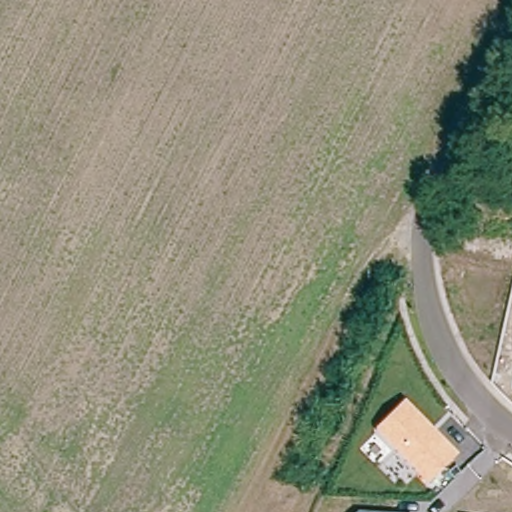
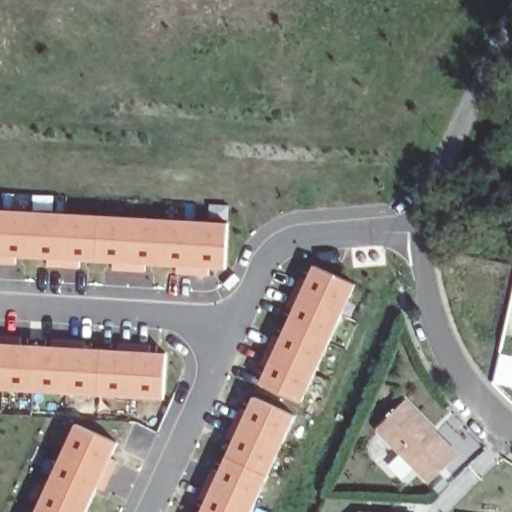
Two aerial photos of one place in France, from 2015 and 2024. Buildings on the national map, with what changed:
new [(230,223),(228,268),(211,267),(211,275),(179,272),(179,265),(147,263),(147,271),(115,269),(115,261),(82,260),(82,267),(50,265),(50,257),(18,255),(18,263),(0,262),(0,209),(230,223)]
new [(300,402),(259,383),(266,367),(259,365),(273,335),(279,338),(292,310),(286,306),(299,277),(306,280),(313,265),(354,283),(300,402)]
new [(23,337),(22,345),(54,346),(55,339),(87,340),(86,348),(120,350),(120,342),(152,345),(152,352),(168,353),(166,398),(0,388),(0,336),(23,337)]
new [(199,498),(212,469),(219,472),(233,441),(226,438),(239,409),(246,412),(253,397),(294,415),(251,512),(201,512),(206,501),(199,498)]
unchanged [(430,483),(379,432),(379,427),(406,401),(459,455),(430,483)]
new [(119,442),(112,457),(119,460),(106,490),(99,486),(88,512),(38,512),(78,423),(119,442)]

